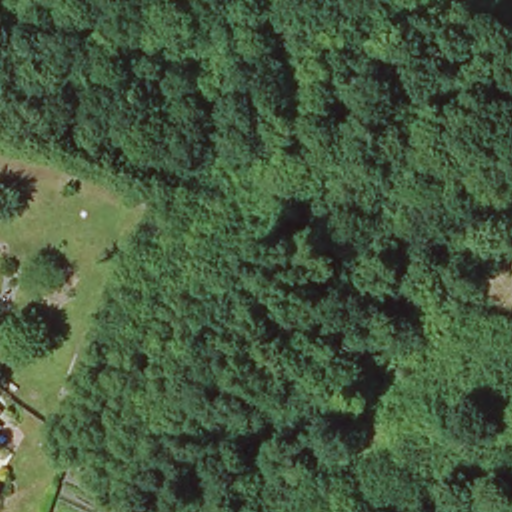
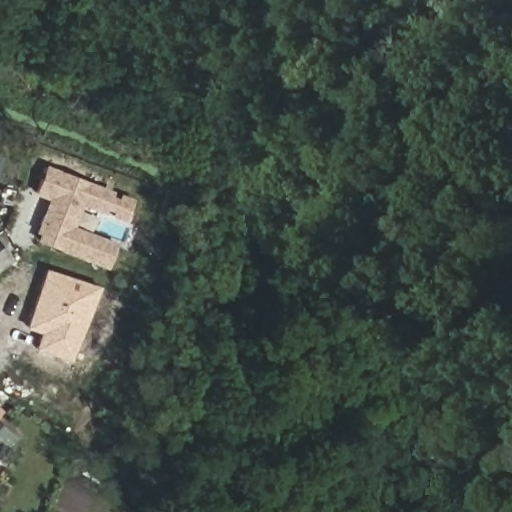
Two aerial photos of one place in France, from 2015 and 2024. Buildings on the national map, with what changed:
new [(47,199),(32,194),(43,166),(132,200),(123,223),(80,207),(74,226),(114,243),(105,269),(31,241),(47,199)]
new [(100,288),(70,361),(34,350),(40,333),(25,328),(44,269),(100,288)]

